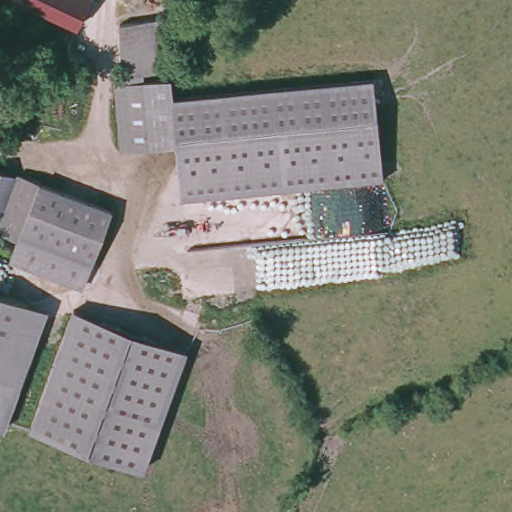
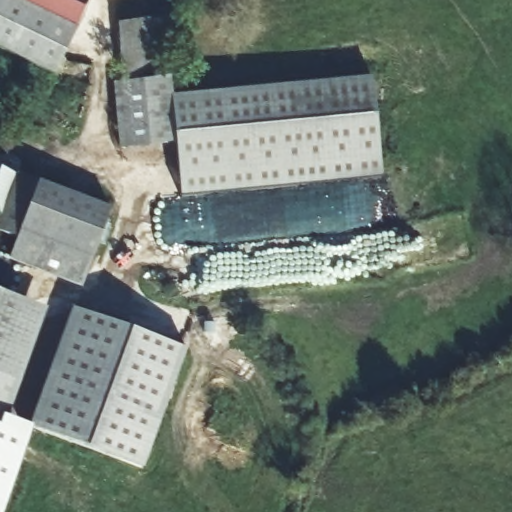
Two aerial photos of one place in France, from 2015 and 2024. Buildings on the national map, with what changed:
new [(14,0),(71,32),(52,74),(0,49),(0,0),(14,0)]
unchanged [(71,32),(14,0),(84,0),(87,1),(71,32)]
unchanged [(160,58),(148,71),(122,76),(118,64),(116,22),(157,19),(157,37),(153,42),(164,49),(160,58)]
unchanged [(170,95),(371,75),(382,176),(180,197),(175,143),(119,149),(112,81),(169,75),(170,95)]
unchanged [(0,205),(0,170),(10,173),(0,205)]
unchanged [(81,285),(8,260),(16,238),(0,232),(0,205),(10,173),(111,207),(81,285)]
unchanged [(0,431),(0,298),(41,311),(3,431),(0,431)]
unchanged [(30,433),(70,312),(186,347),(148,469),(30,433)]
new [(4,512),(0,512),(0,431),(3,431),(7,417),(32,426),(30,433),(4,512)]

